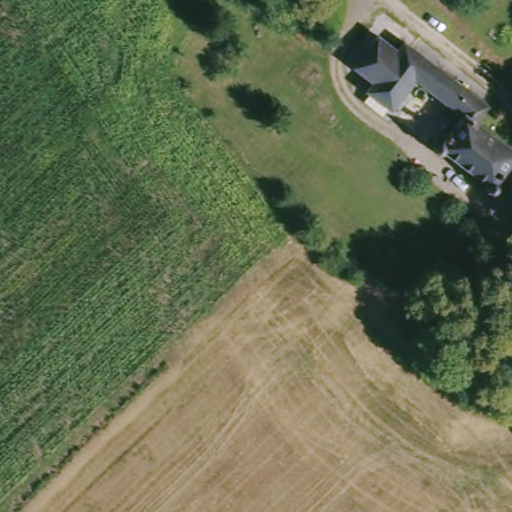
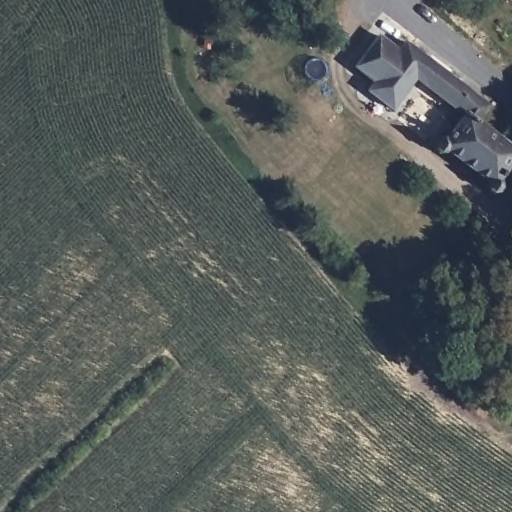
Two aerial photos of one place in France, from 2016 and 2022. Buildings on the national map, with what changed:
unchanged [(471,117),(512,149),(512,150),(492,176),(494,180),(494,185),(491,187),(486,187),(483,185),(481,177),(440,146),(436,146),(432,145),(430,142),(432,137),(452,109),(409,77),(388,105),(364,86),(371,77),(351,61),(374,32),(394,47),(401,37),(483,100),(471,117)]

